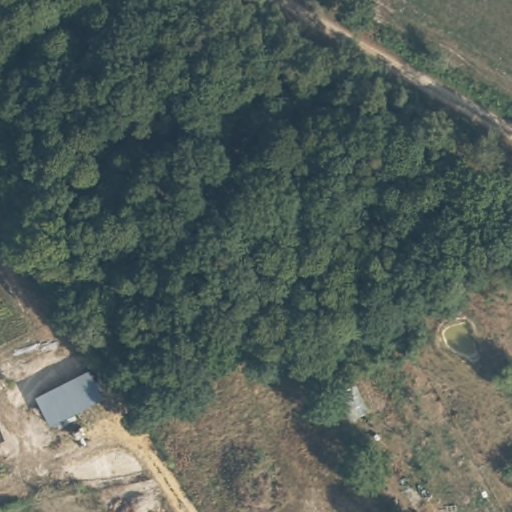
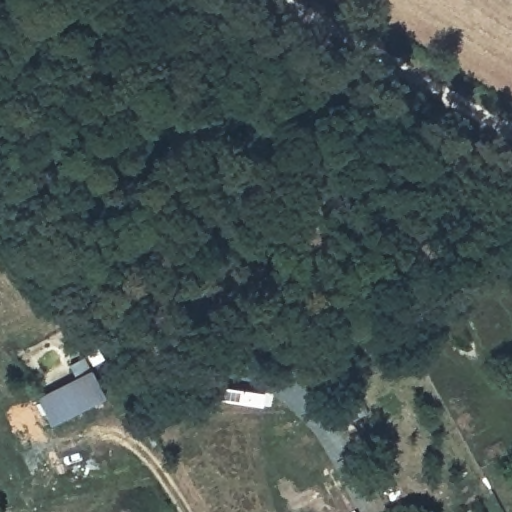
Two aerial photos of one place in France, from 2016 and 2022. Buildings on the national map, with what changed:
unchanged [(52,423),(36,395),(73,377),(67,364),(83,356),(90,368),(103,398),(52,423)]

